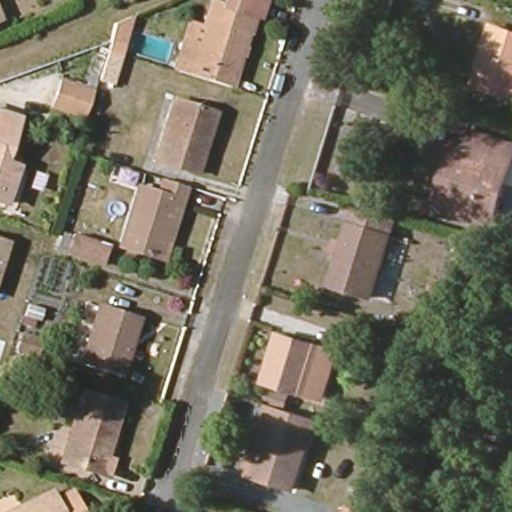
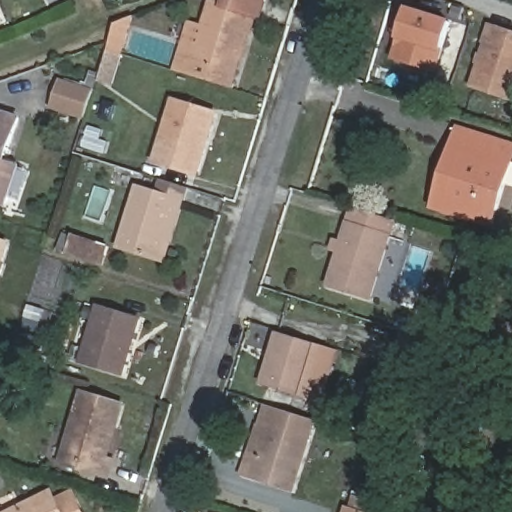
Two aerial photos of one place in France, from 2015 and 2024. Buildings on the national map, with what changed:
unchanged [(270,19),(265,17),(242,89),(185,71),(200,24),(213,28),(221,2),(222,0),(276,0),(270,19)]
new [(392,61),(409,6),(454,20),(437,74),(392,61)]
unchanged [(127,55),(113,51),(120,24),(139,17),(127,55)]
unchanged [(0,20),(0,18),(1,20),(0,20)]
unchanged [(472,85),(492,27),(512,34),(512,98),(472,85)]
unchanged [(102,80),(96,78),(105,49),(111,51),(102,80)]
unchanged [(117,84),(104,80),(112,54),(125,58),(117,84)]
unchanged [(85,117),(52,107),(61,82),(92,92),(85,117)]
unchanged [(197,174),(155,162),(174,101),(216,114),(197,174)]
unchanged [(4,163),(18,167),(6,205),(0,202),(0,113),(18,119),(4,163)]
unchanged [(452,151),(460,128),(512,145),(512,164),(492,226),(443,211),(434,208),(452,151)]
unchanged [(167,262),(159,260),(178,200),(138,187),(142,174),(190,188),(167,262)]
unchanged [(178,200),(159,260),(120,247),(138,187),(178,200)]
unchanged [(372,298),(328,286),(353,207),(381,216),(396,221),(372,298)]
unchanged [(104,266),(67,253),(74,235),(110,247),(104,266)]
unchanged [(0,242),(8,244),(0,268),(0,242)]
unchanged [(443,296),(430,291),(433,279),(447,284),(443,296)]
unchanged [(124,375),(82,362),(99,307),(141,320),(124,375)]
unchanged [(305,395),(262,383),(277,335),(338,353),(331,375),(312,369),(305,395)]
unchanged [(416,375),(392,368),(402,337),(426,345),(416,375)]
unchanged [(38,356),(19,350),(22,338),(42,343),(38,356)]
unchanged [(0,361),(0,352),(4,353),(1,362),(0,361)]
unchanged [(257,426),(260,427),(266,406),(263,404),(267,390),(289,396),(285,411),(316,422),(294,491),(251,477),(242,475),(257,426)]
unchanged [(114,462),(109,477),(62,462),(83,393),(123,406),(116,429),(112,442),(107,460),(114,462)]
unchanged [(61,500),(77,492),(81,499),(87,512),(16,512),(57,492),(61,500)]
unchanged [(359,512),(346,512),(347,508),(359,512)]

